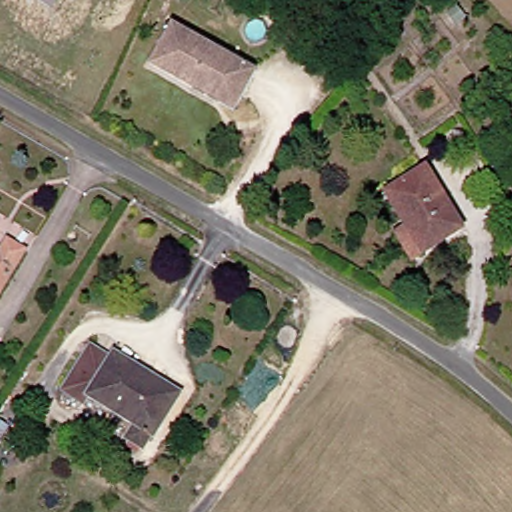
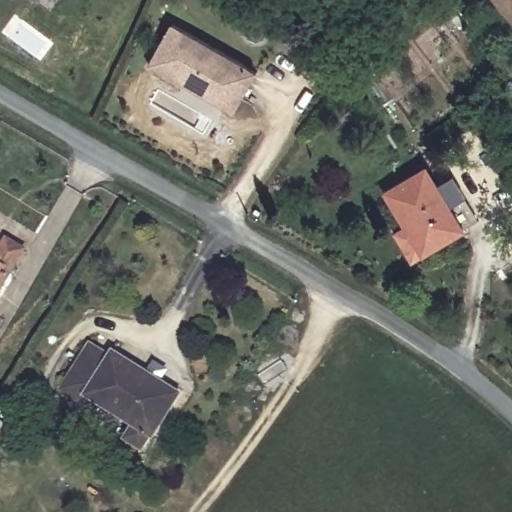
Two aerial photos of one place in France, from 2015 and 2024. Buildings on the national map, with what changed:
unchanged [(232,117),(218,110),(147,72),(169,32),(240,69),(254,75),(232,117)]
unchanged [(395,237),(402,231),(382,196),(420,174),(457,233),(424,253),(410,261),(395,237)]
unchanged [(25,250),(0,293),(0,247),(5,238),(25,250)]
unchanged [(106,359),(110,352),(179,394),(143,455),(122,442),(130,425),(87,401),(82,406),(56,389),(85,345),(106,359)]

